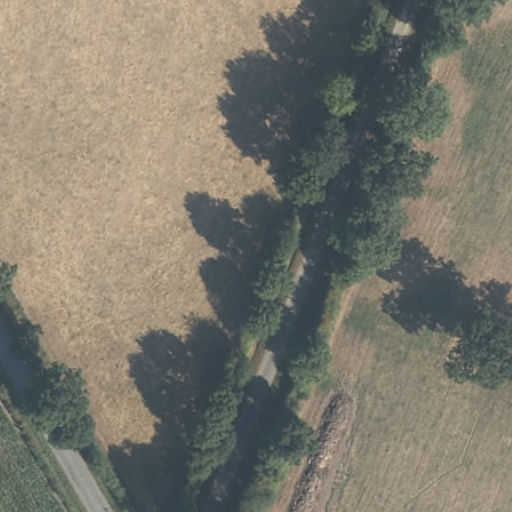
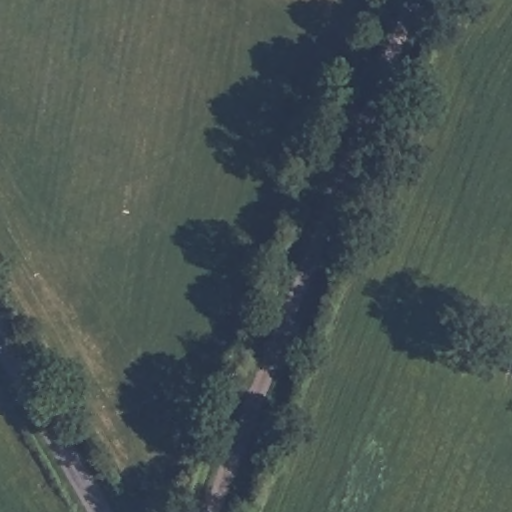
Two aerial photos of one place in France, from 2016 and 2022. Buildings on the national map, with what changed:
[]

